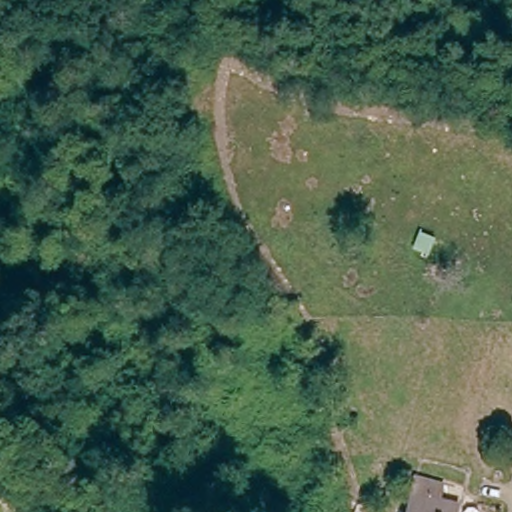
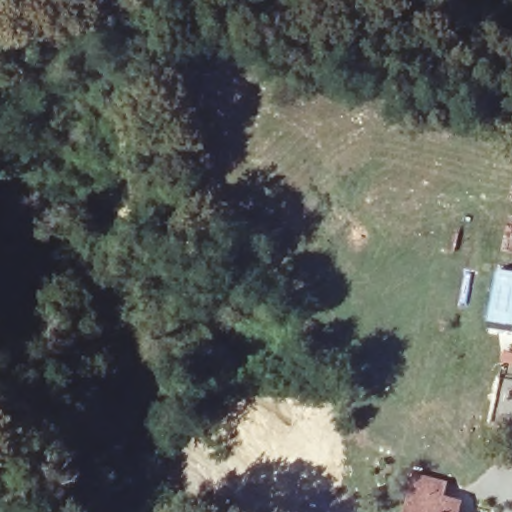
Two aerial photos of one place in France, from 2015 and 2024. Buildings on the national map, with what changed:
new [(512,272),(512,333),(488,328),(501,269),(512,272)]
unchanged [(416,477),(444,482),(441,499),(456,502),(454,512),(409,512),(416,477)]

